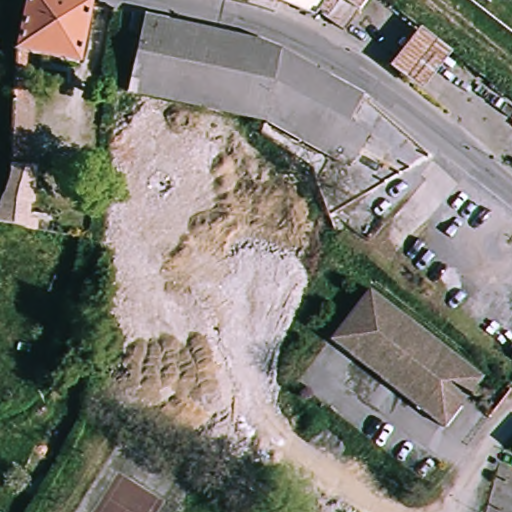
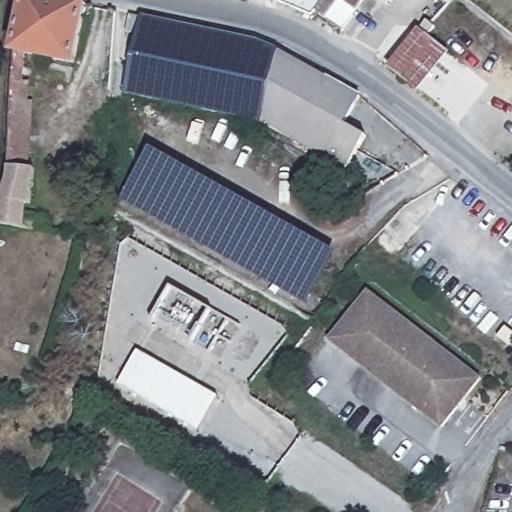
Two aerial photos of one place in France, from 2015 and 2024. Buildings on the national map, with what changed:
unchanged [(16,50),(28,0),(70,0),(90,4),(76,62),(16,50)]
unchanged [(296,7),(279,0),(327,0),(321,9),(316,17),(296,7)]
unchanged [(327,0),(367,0),(347,27),(321,9),(327,0)]
new [(442,0),(452,0),(448,5),(442,0)]
unchanged [(145,16),(261,41),(282,52),(261,122),(128,91),(145,16)]
unchanged [(420,92),(388,67),(420,26),(452,52),(420,92)]
unchanged [(331,79),(366,101),(349,125),(366,137),(343,172),(261,122),(282,52),(331,79)]
unchanged [(14,80),(30,81),(29,105),(34,105),(32,137),(10,136),(14,80)]
unchanged [(32,137),(42,137),(41,152),(32,152),(31,173),(47,177),(37,211),(30,210),(24,234),(0,229),(0,199),(8,173),(10,136),(32,137)]
new [(147,154),(332,259),(303,310),(118,204),(147,154)]
new [(242,328),(222,361),(152,320),(171,286),(242,328)]
unchanged [(382,382),(325,338),(365,288),(478,377),(439,427),(382,382)]
new [(138,350),(219,395),(199,431),(118,385),(138,350)]

